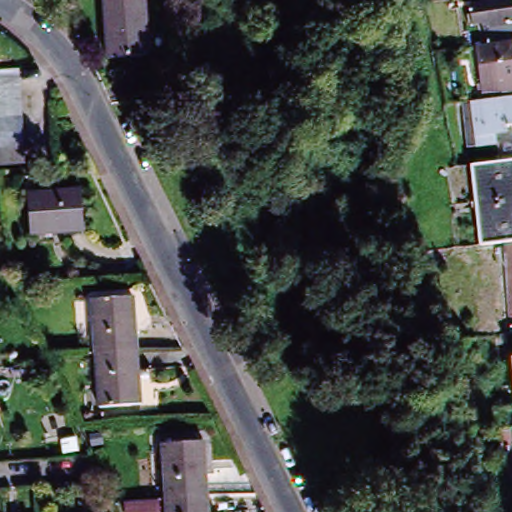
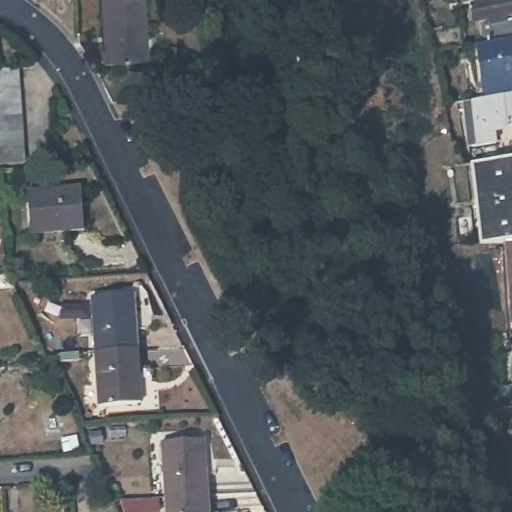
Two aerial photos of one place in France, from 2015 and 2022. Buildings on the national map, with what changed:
unchanged [(107,59),(103,0),(143,0),(148,56),(107,59)]
unchanged [(482,30),(478,31),(475,14),(512,8),(512,95),(486,98),(485,48),(482,30)]
unchanged [(17,74),(18,74),(19,86),(19,89),(20,103),(21,119),(23,135),(24,151),(25,167),(0,169),(0,75),(4,74),(17,74)]
unchanged [(486,98),(512,95),(512,128),(502,129),(503,133),(495,134),(496,146),(470,148),(463,101),(486,98)]
unchanged [(495,245),(488,246),(478,164),(489,163),(512,160),(512,243),(495,245)]
unchanged [(84,233),(64,235),(64,230),(30,233),(29,197),(81,192),(84,233)]
unchanged [(506,330),(495,245),(512,243),(512,329),(506,330)]
unchanged [(96,355),(91,301),(130,298),(132,331),(134,331),(136,353),(96,355)]
unchanged [(137,374),(136,375),(137,407),(100,409),(96,355),(136,353),(137,374)]
unchanged [(502,383),(512,382),(512,401),(505,402),(502,383)]
unchanged [(167,500),(164,446),(200,444),(202,476),(205,477),(206,498),(167,500)]
unchanged [(208,512),(168,512),(167,500),(206,498),(208,512)]

